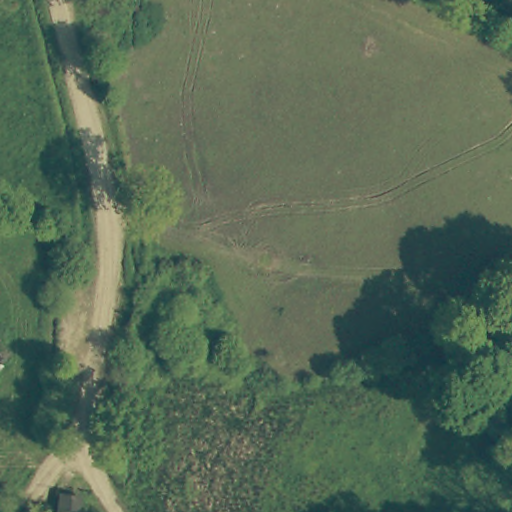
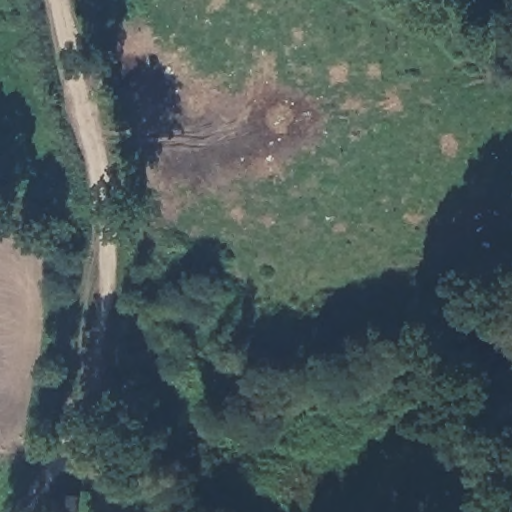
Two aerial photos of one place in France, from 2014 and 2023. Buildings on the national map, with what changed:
unchanged [(86,501),(84,512),(60,512),(61,497),(86,501)]

